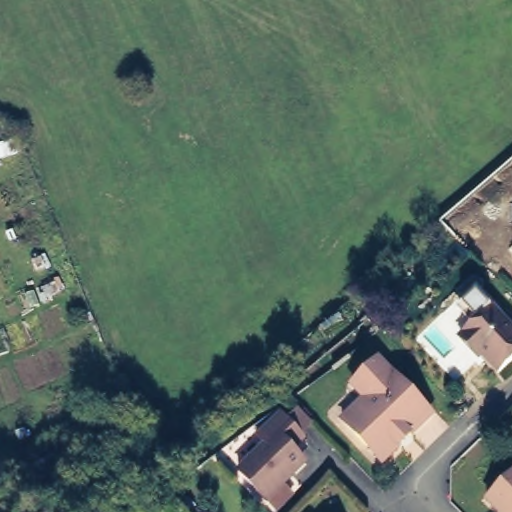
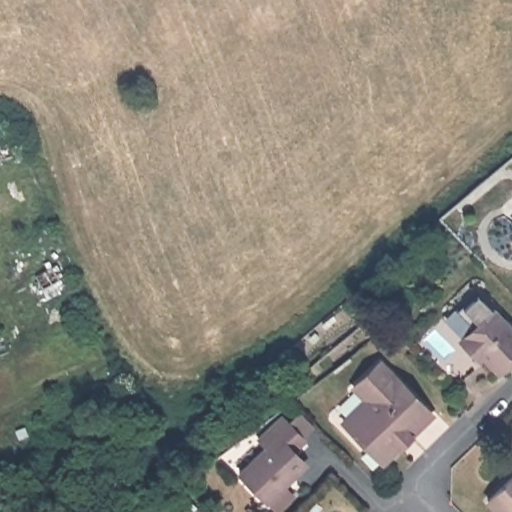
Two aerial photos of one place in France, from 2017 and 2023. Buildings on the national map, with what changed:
unchanged [(477,353),(463,339),(495,307),(512,324),(512,361),(502,370),(486,354),(482,358),(477,353)]
unchanged [(367,396),(355,382),(381,356),(432,410),(383,456),(345,417),(367,396)]
unchanged [(259,435),(282,410),(305,434),(295,445),(305,456),(284,477),(285,478),(266,496),(238,468),(265,441),(259,435)]
unchanged [(502,509),(489,496),(512,473),(512,512),(505,512),(502,509)]

